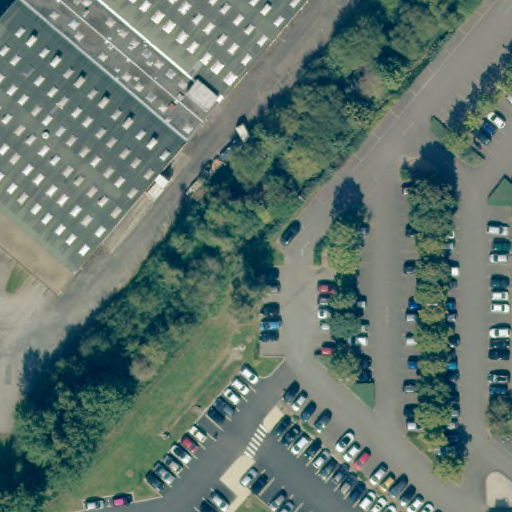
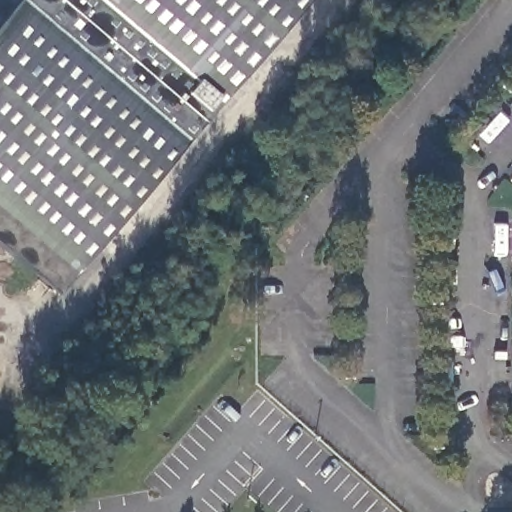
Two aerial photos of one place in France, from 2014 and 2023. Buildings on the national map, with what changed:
unchanged [(0,21),(18,0),(310,0),(54,298),(0,252),(0,21)]

